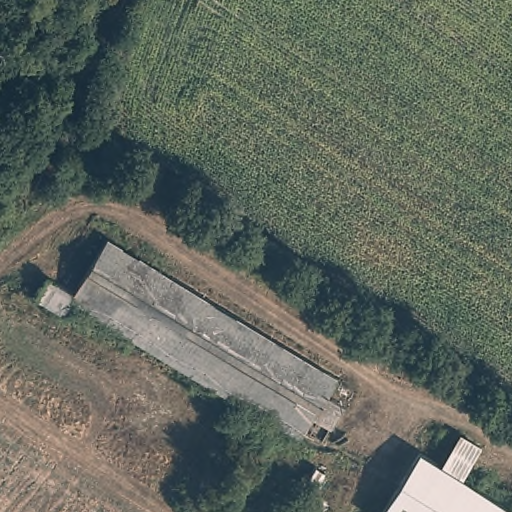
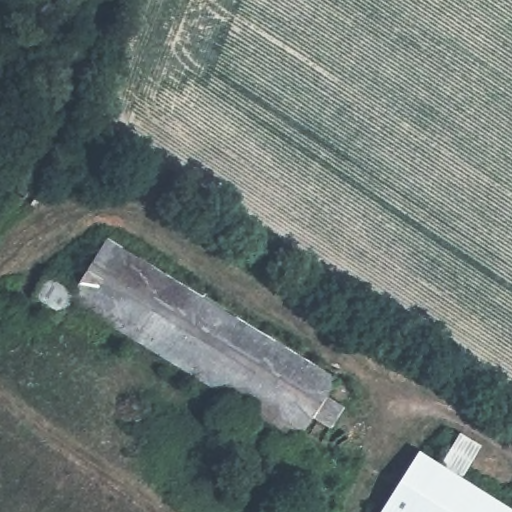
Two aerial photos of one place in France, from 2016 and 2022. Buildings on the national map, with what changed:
unchanged [(335,377),(326,397),(341,406),(325,429),(312,420),(302,435),(73,293),(109,236),(335,377)]
unchanged [(34,289),(43,274),(73,293),(63,309),(34,289)]
unchanged [(472,436),(493,454),(472,485),(447,468),(472,436)]
unchanged [(472,485),(509,512),(384,512),(423,454),(447,468),(472,485)]

